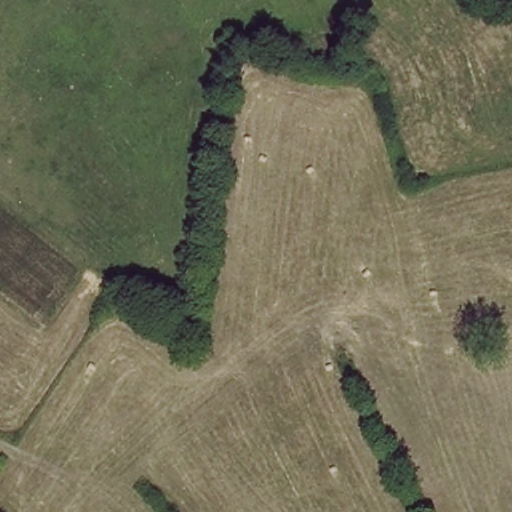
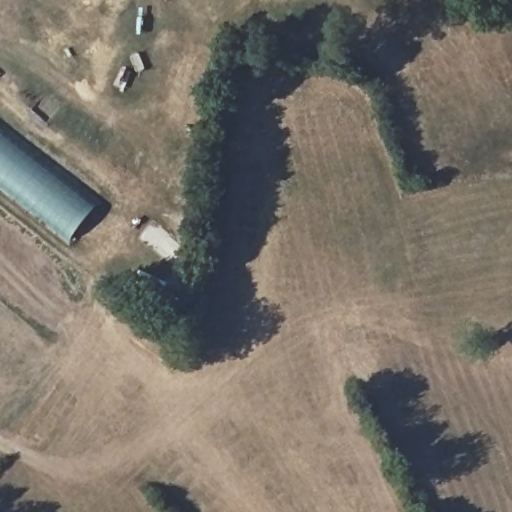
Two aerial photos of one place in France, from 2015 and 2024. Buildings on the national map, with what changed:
new [(97,204),(68,241),(0,188),(0,129),(97,204)]

